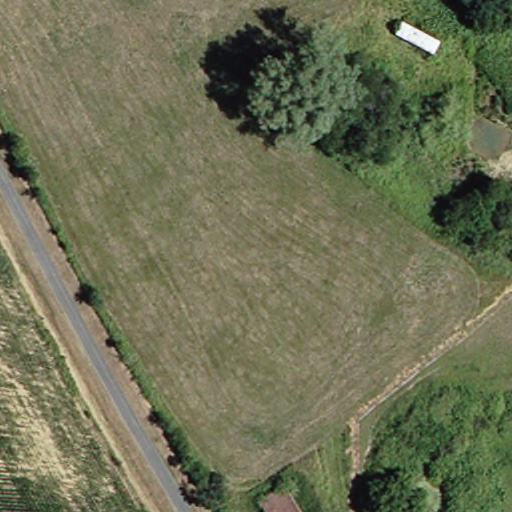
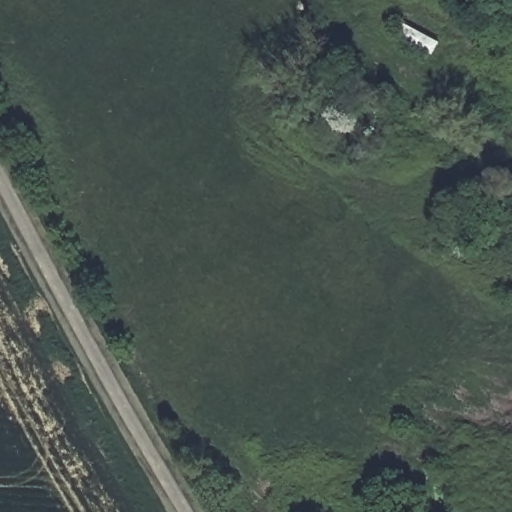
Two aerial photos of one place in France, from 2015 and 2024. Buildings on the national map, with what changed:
unchanged [(250,500),(273,484),(291,512),(256,512),(250,500)]

